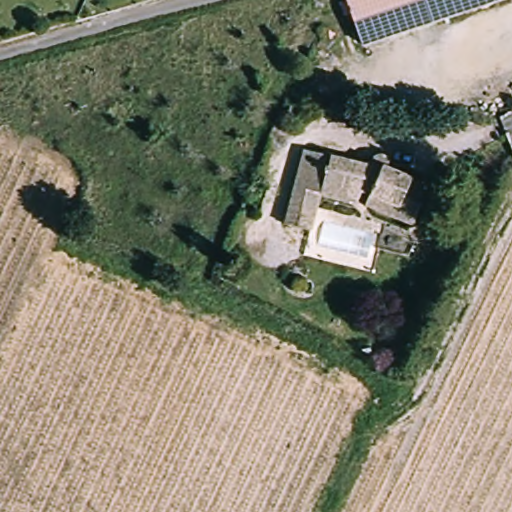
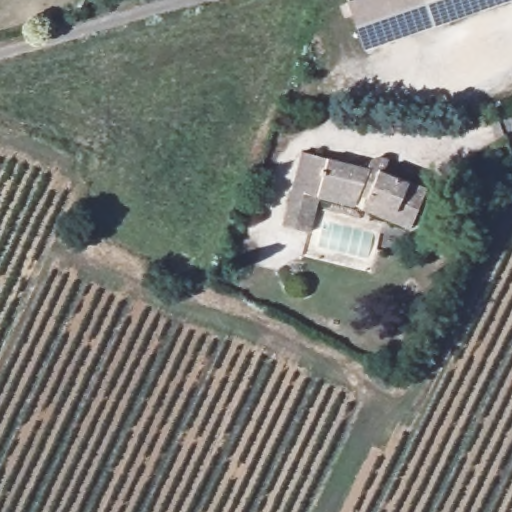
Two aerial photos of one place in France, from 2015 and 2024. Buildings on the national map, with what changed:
unchanged [(356,48),(342,3),(351,0),(429,0),(436,22),(356,48)]
unchanged [(436,22),(429,0),(505,0),(436,22)]
unchanged [(293,174),(301,152),(331,161),(345,150),(359,152),(356,167),(395,180),(384,216),(332,200),(289,186),(293,174)]

